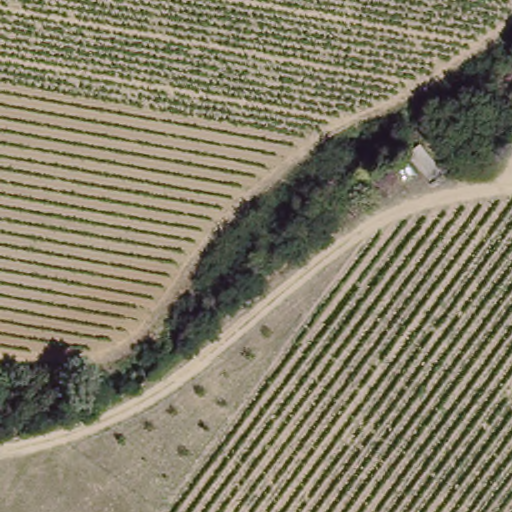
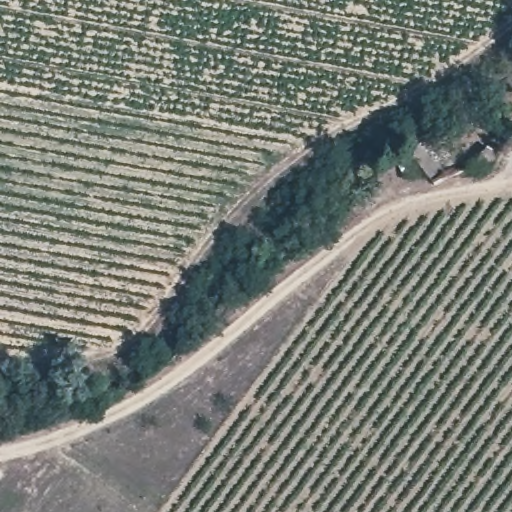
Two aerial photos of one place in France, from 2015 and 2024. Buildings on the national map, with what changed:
unchanged [(478,144),(500,159),(493,169),(472,155),(478,144)]
unchanged [(399,161),(412,147),(442,167),(431,182),(399,161)]

